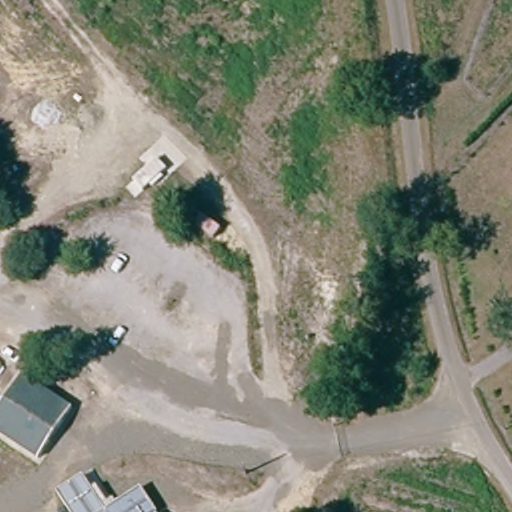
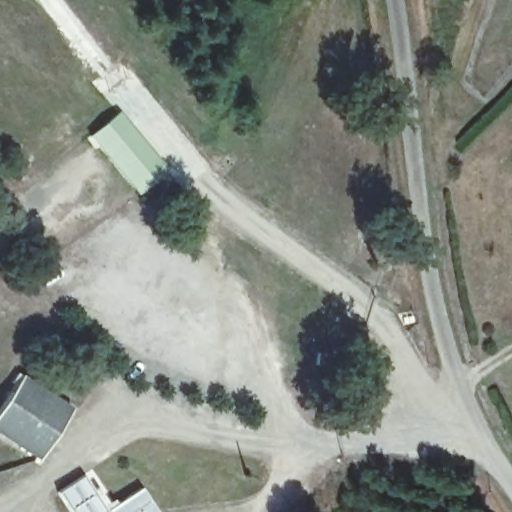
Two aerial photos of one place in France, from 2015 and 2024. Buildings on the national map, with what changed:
new [(117,110),(166,167),(140,191),(89,134),(117,110)]
demolished [(126,180),(139,190),(124,208),(112,197),(126,180)]
unchanged [(21,378),(75,407),(45,462),(0,437),(0,419),(21,378)]
unchanged [(59,491),(84,475),(106,510),(141,487),(157,512),(72,512),(59,491)]

